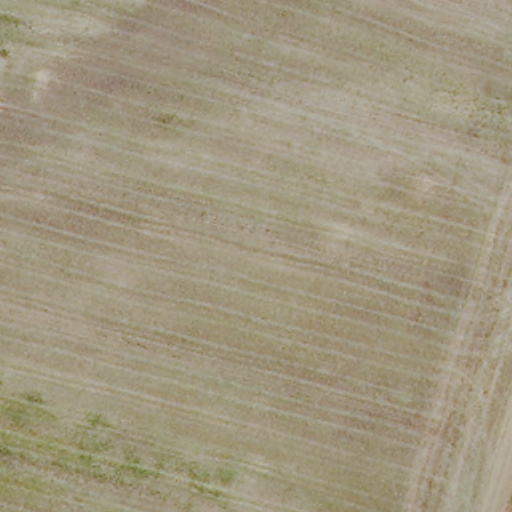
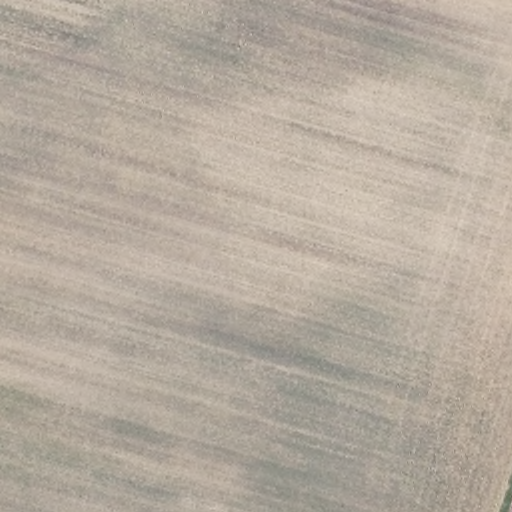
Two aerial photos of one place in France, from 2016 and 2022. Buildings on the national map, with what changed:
[]

